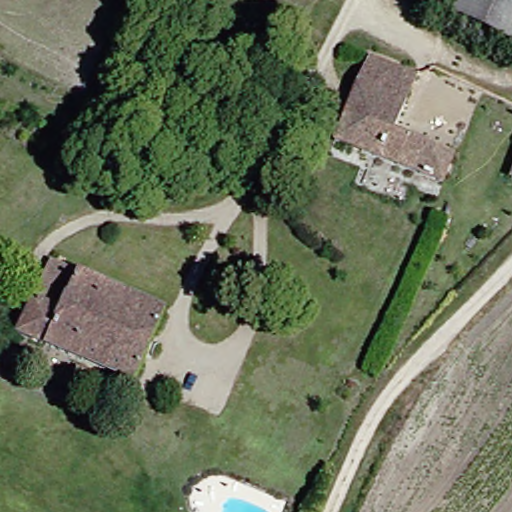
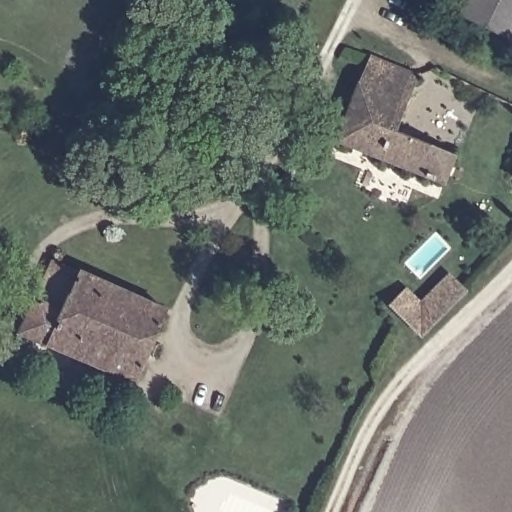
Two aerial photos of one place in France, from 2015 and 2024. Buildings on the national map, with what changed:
unchanged [(435,0),(512,0),(512,47),(430,11),(435,0)]
unchanged [(385,127),(444,157),(433,184),(328,135),(365,55),(409,73),(385,127)]
unchanged [(512,164),(512,173),(508,171),(512,164)]
unchanged [(22,301),(41,260),(155,312),(124,383),(7,334),(22,301)]
new [(448,272),(467,291),(420,338),(387,305),(405,286),(420,301),(448,272)]

